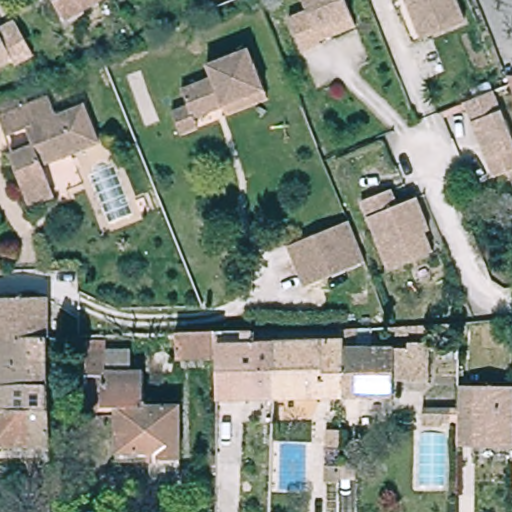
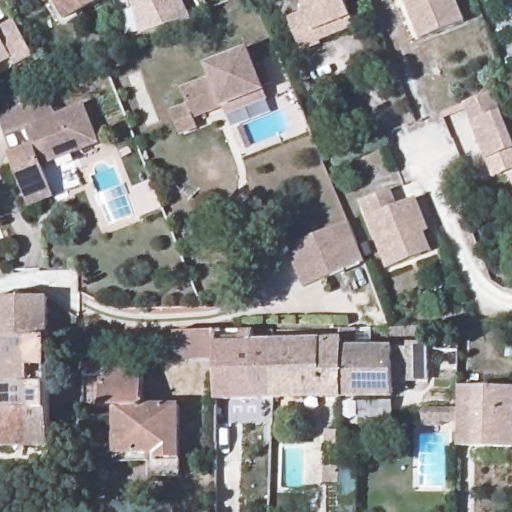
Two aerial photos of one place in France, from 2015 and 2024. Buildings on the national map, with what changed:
unchanged [(80,11),(76,5),(62,13),(54,0),(99,0),(80,11)]
new [(190,15),(141,37),(131,0),(184,0),(190,15)]
unchanged [(325,35),(326,38),(305,46),(292,12),(304,8),(300,0),(344,0),(349,13),(354,24),(325,35)]
unchanged [(463,25),(420,41),(411,16),(404,0),(453,0),(463,25)]
unchanged [(34,58),(15,68),(11,61),(0,66),(0,32),(15,24),(34,58)]
unchanged [(178,133),(170,112),(187,106),(179,88),(210,76),(205,65),(246,48),(263,89),(265,96),(224,112),(222,106),(215,109),(192,118),(195,127),(178,133)]
new [(512,76),(512,88),(507,75),(512,76)]
unchanged [(31,207),(27,196),(11,155),(35,145),(33,140),(29,129),(8,137),(0,118),(0,117),(50,96),(58,116),(85,105),(100,143),(55,162),(44,166),(51,187),(56,197),(31,207)]
unchanged [(483,148),(468,111),(496,99),(511,137),(512,141),(512,157),(490,166),(483,148)]
unchanged [(424,254),(389,268),(363,201),(392,190),(398,205),(410,200),(417,198),(422,211),(429,228),(424,230),(433,251),(424,254)]
unchanged [(359,262),(302,286),(285,246),(343,222),(359,262)]
unchanged [(22,337),(21,298),(50,297),(50,298),(50,337),(22,337)]
unchanged [(5,298),(21,298),(22,337),(0,337),(0,298),(5,298)]
unchanged [(340,341),(340,330),(352,329),(352,343),(404,345),(404,394),(339,394),(340,341)]
unchanged [(214,359),(214,332),(243,331),(242,395),(238,395),(214,395),(214,359)]
unchanged [(242,395),(243,331),(252,331),(253,340),(267,340),(266,395),(242,395)]
unchanged [(174,359),(173,333),(190,333),(214,332),(214,359),(174,359)]
unchanged [(288,394),(289,341),(289,333),(302,333),(302,341),(340,341),(339,394),(288,394)]
unchanged [(0,377),(0,337),(22,337),(50,337),(51,377),(0,377)]
unchanged [(106,351),(133,351),(133,374),(147,374),(147,409),(184,409),(184,476),(153,477),(153,458),(119,458),(118,409),(104,409),(104,377),(87,378),(86,340),(106,340),(106,351)]
unchanged [(266,395),(267,340),(289,341),(288,394),(266,395)]
unchanged [(0,412),(0,377),(51,377),(51,412),(0,412)]
unchanged [(461,386),(512,387),(512,447),(460,446),(461,386)]
unchanged [(0,451),(0,412),(51,412),(51,451),(0,451)]

